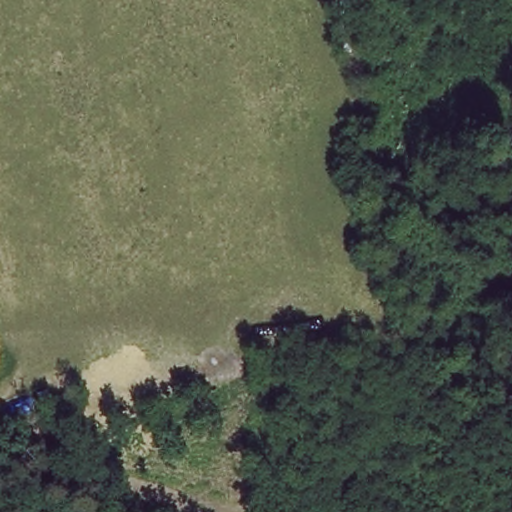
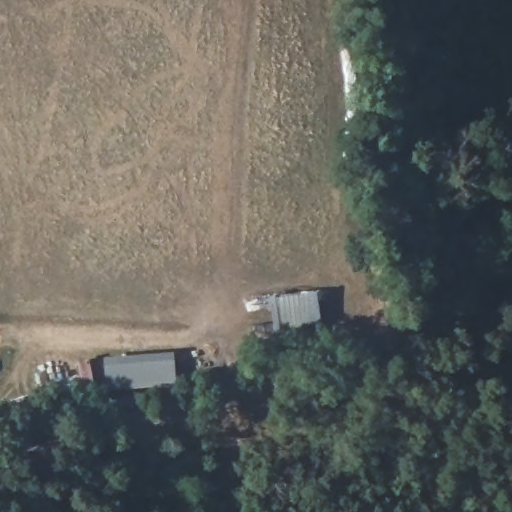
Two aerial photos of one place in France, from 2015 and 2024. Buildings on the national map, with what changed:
new [(319,324),(277,329),(274,297),(316,292),(319,324)]
new [(105,389),(103,356),(172,352),(174,385),(105,389)]

